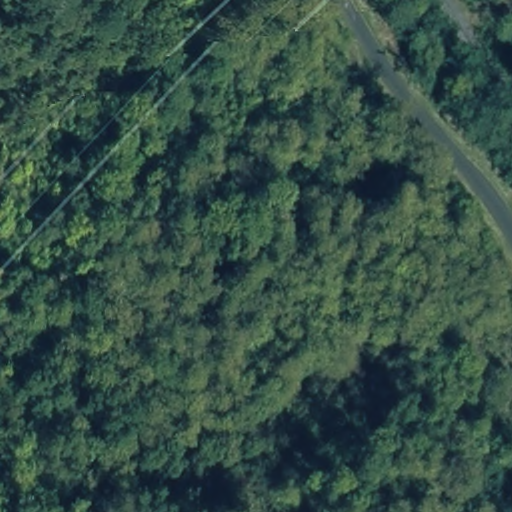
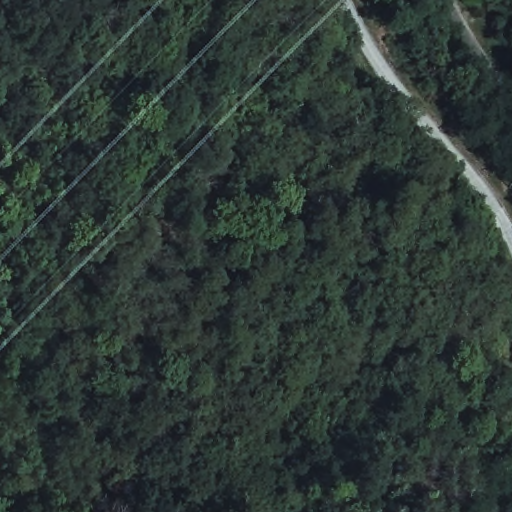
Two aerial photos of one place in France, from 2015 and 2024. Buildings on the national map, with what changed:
[]

